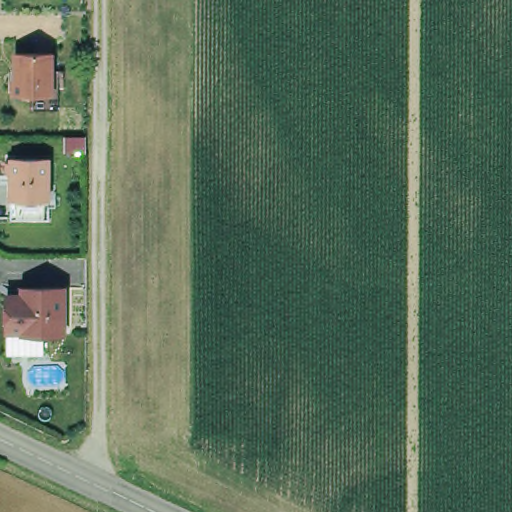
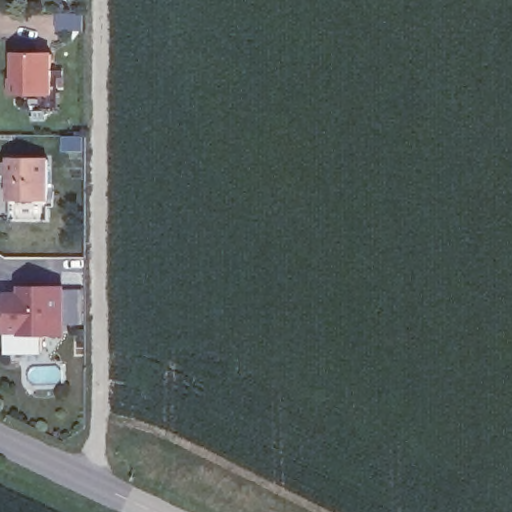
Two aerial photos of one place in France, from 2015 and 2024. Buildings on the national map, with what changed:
unchanged [(52,50),(52,92),(15,92),(13,50),(52,50)]
unchanged [(51,156),(50,197),(10,197),(8,156),(51,156)]
unchanged [(65,287),(65,331),(3,327),(5,292),(18,292),(20,286),(65,287)]

